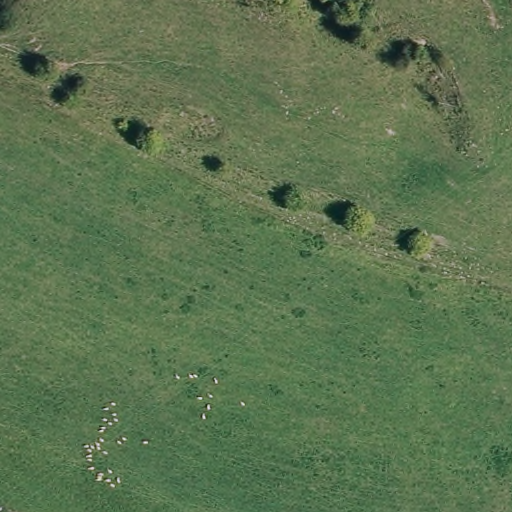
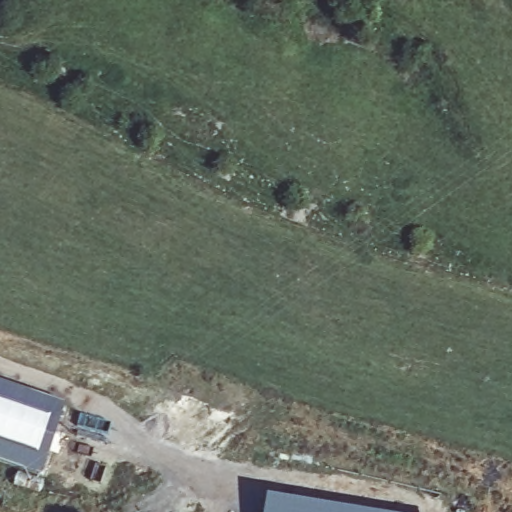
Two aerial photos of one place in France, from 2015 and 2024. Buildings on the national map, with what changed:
new [(59,400),(44,472),(0,458),(0,381),(59,400)]
new [(263,512),(265,493),(383,512),(263,512)]

